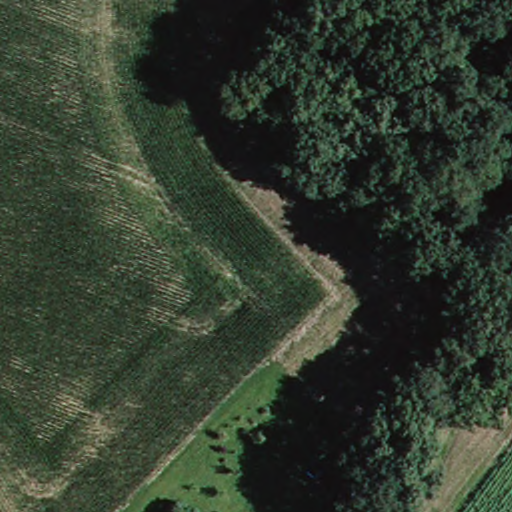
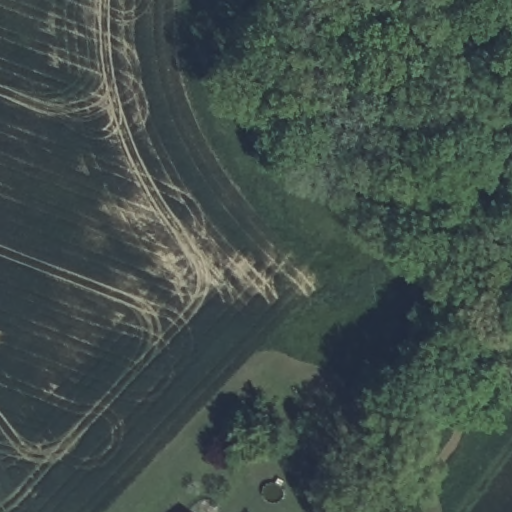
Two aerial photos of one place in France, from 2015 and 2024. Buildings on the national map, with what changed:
unchanged [(210,512),(195,512),(206,497),(215,504),(210,512)]

